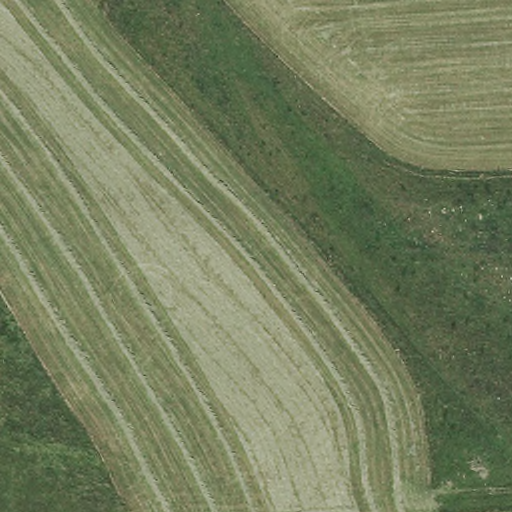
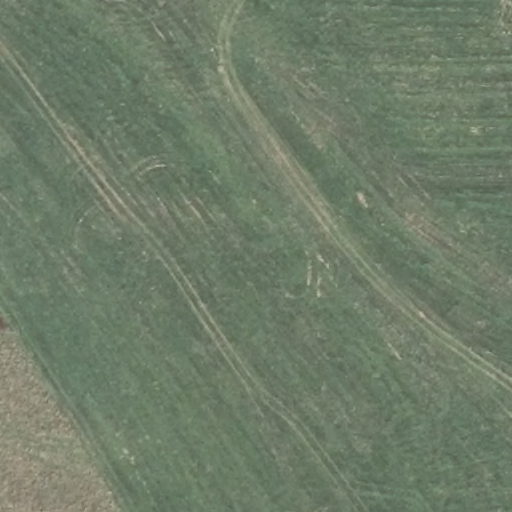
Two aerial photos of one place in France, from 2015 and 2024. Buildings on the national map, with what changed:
[]

